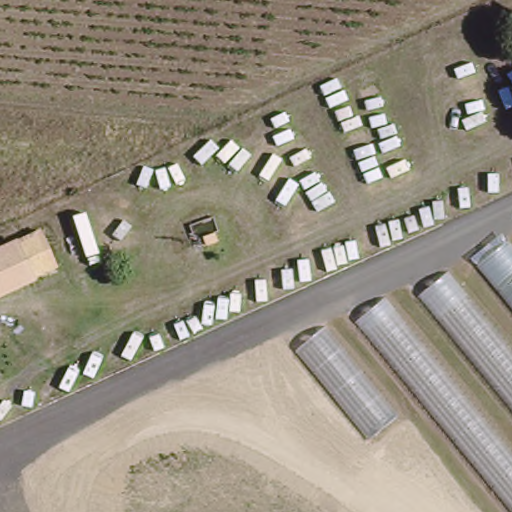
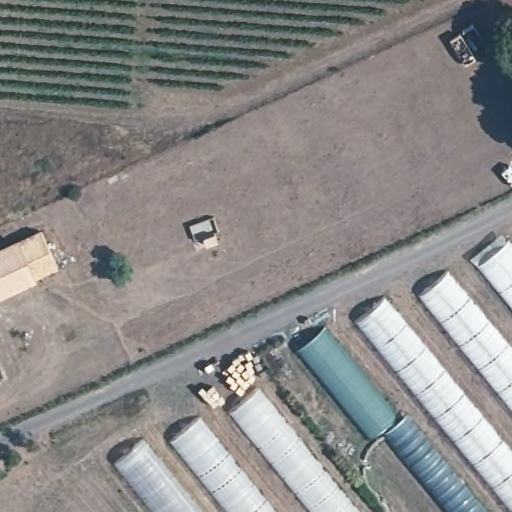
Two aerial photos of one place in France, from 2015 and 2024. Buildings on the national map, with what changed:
unchanged [(469,261),(503,231),(512,242),(512,313),(469,261)]
unchanged [(0,296),(0,251),(39,233),(56,270),(0,296)]
unchanged [(410,291),(441,264),(512,350),(512,413),(410,291)]
unchanged [(345,317),(375,293),(512,461),(512,512),(504,512),(345,317)]
unchanged [(289,348),(318,322),(394,412),(365,437),(289,348)]
new [(228,412),(257,390),(357,512),(308,512),(228,412)]
new [(488,512),(452,512),(385,431),(407,413),(488,512)]
new [(170,442),(198,419),(271,512),(226,512),(170,442)]
new [(113,464),(143,438),(203,512),(152,512),(113,464)]

